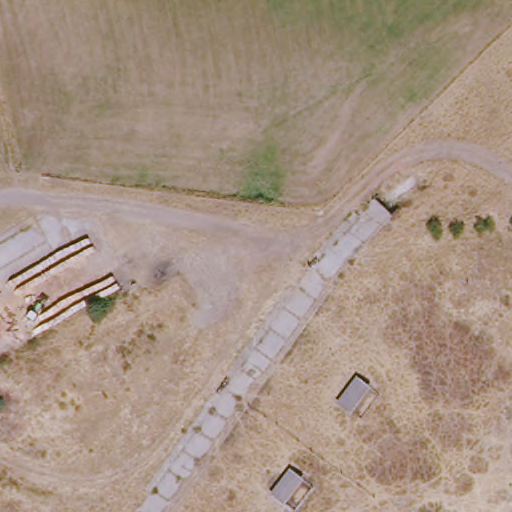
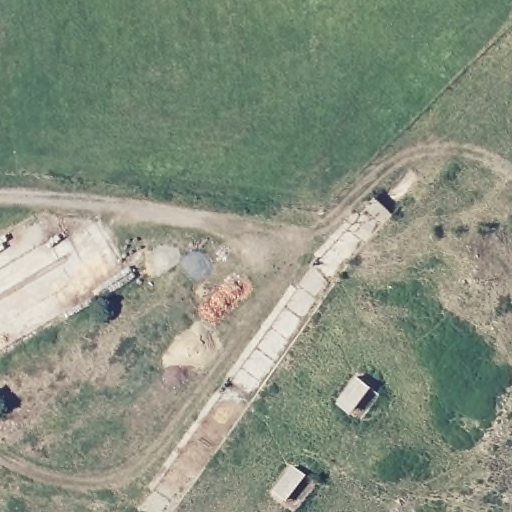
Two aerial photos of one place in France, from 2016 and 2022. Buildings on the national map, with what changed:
unchanged [(343,405),(362,376),(378,388),(356,417),(343,405)]
unchanged [(294,505),(290,509),(275,498),(295,470),(317,487),(297,510),(294,505)]

